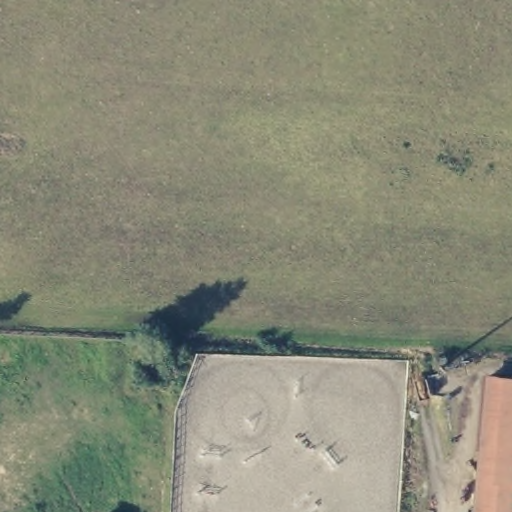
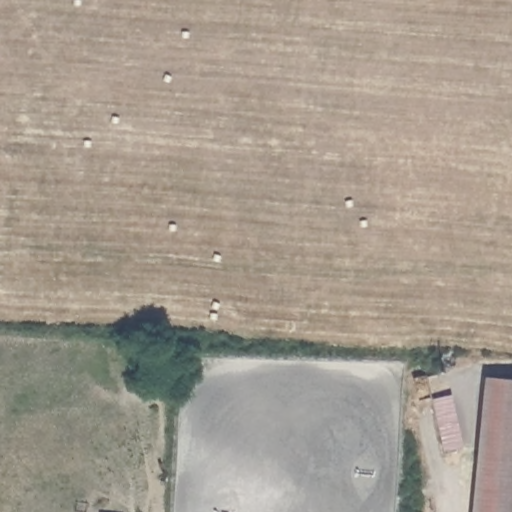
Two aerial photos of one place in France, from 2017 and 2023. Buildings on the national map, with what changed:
unchanged [(482,380),(505,382),(494,512),(471,512),(482,380)]
unchanged [(512,383),(512,512),(494,512),(505,382),(512,383)]

